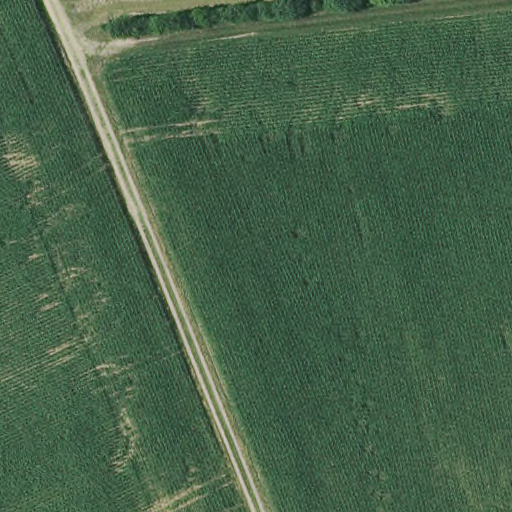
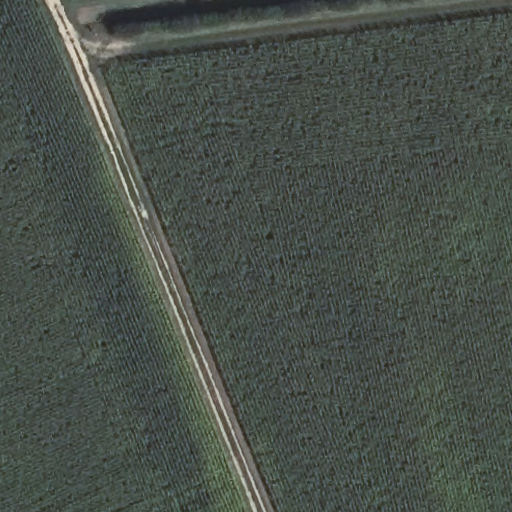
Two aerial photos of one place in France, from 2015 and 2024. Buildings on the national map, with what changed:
[]

